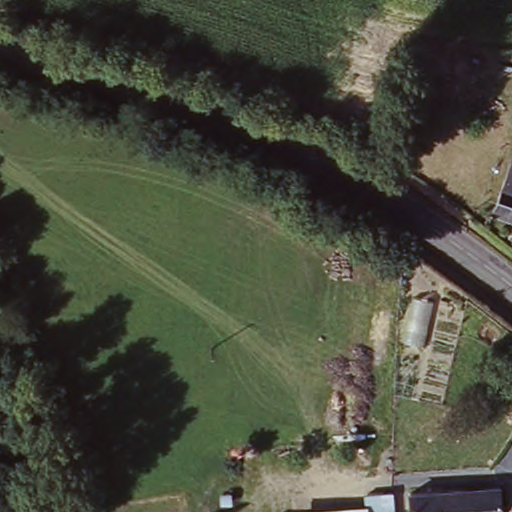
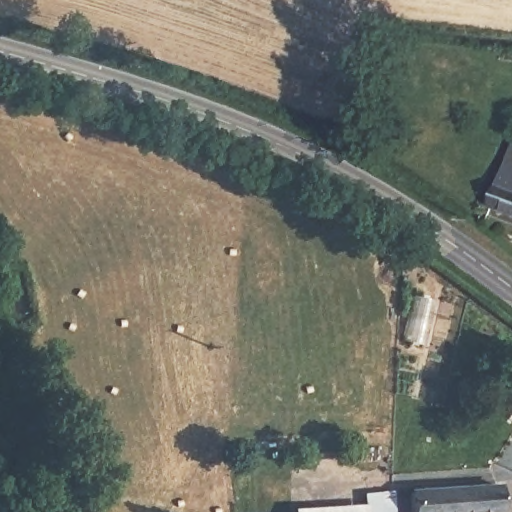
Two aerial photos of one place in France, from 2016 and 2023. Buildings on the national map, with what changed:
unchanged [(512,213),(495,207),(512,161),(512,213)]
unchanged [(500,485),(501,512),(416,512),(415,489),(500,485)]
unchanged [(397,492),(397,512),(371,512),(371,491),(397,492)]

